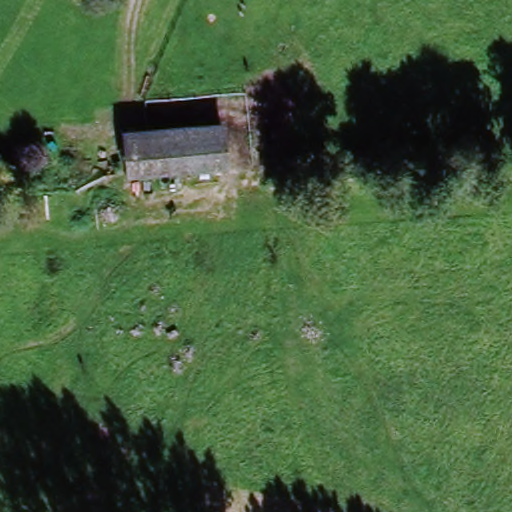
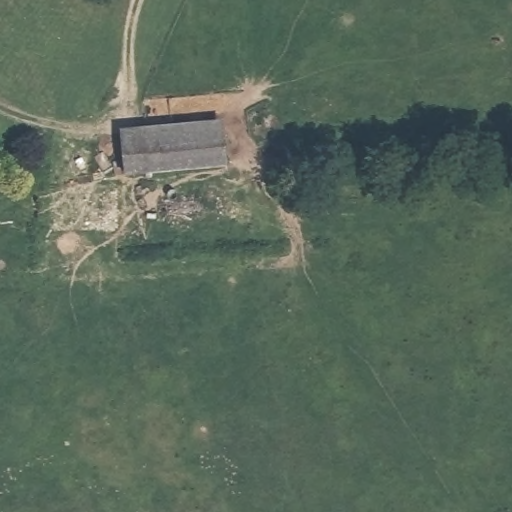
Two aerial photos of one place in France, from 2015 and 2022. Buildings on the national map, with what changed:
unchanged [(178,127),(226,122),(233,168),(124,180),(120,133),(178,127)]

